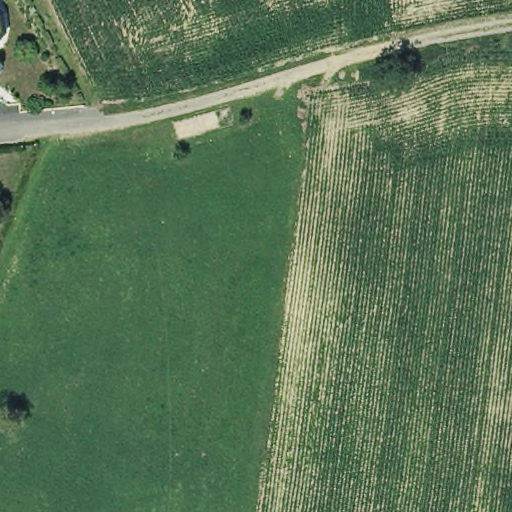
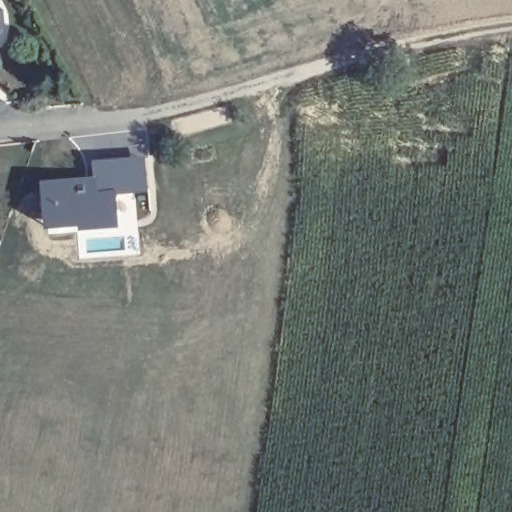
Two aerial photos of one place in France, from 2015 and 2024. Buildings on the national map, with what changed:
unchanged [(1,7),(5,21),(0,30),(0,6),(1,7)]
new [(93,177),(91,161),(143,157),(146,192),(116,196),(119,229),(44,232),(38,182),(93,177)]

